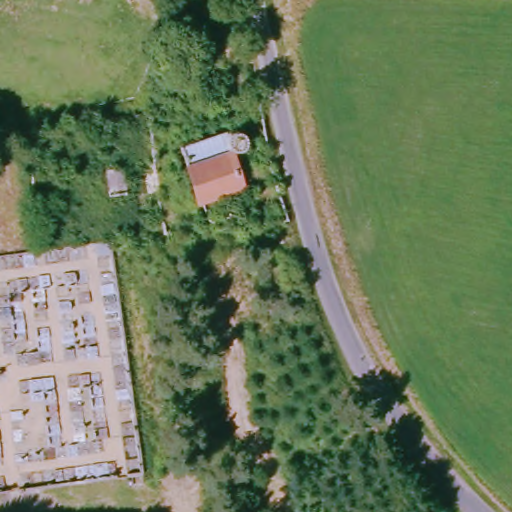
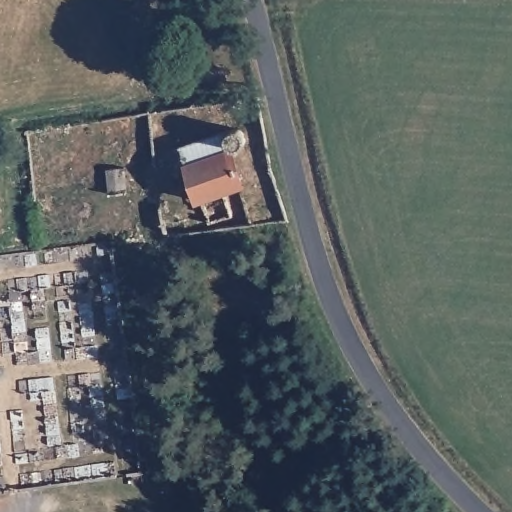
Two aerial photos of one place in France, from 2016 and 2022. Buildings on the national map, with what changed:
unchanged [(227,138),(232,136),(234,136),(240,138),(244,142),(245,148),(244,153),(240,159),(235,161),(232,161),(241,193),(224,198),(230,220),(208,227),(202,203),(197,205),(183,153),(224,141),(227,138)]
unchanged [(128,177),(130,199),(114,202),(111,178),(128,177)]

